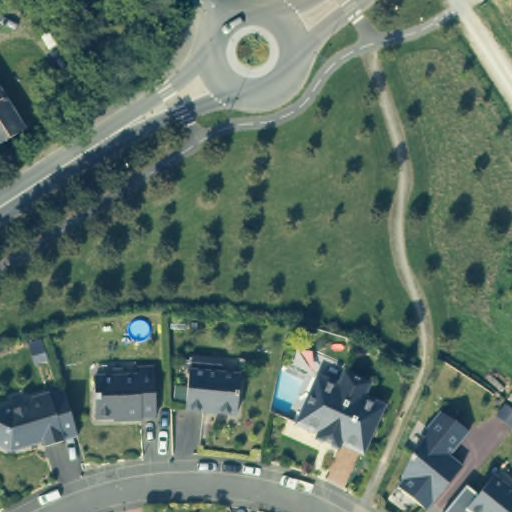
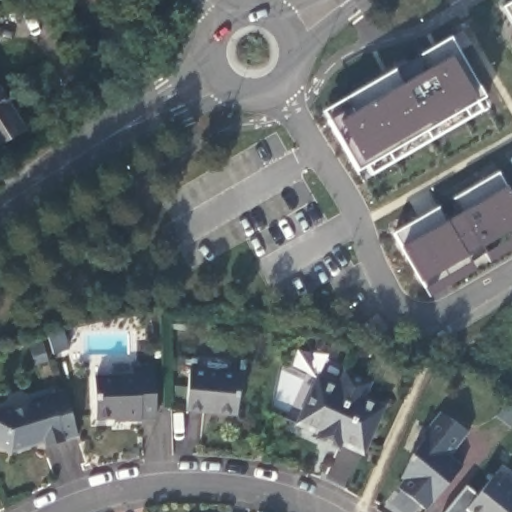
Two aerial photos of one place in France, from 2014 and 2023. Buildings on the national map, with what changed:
new [(512,0),(512,26),(501,6),(512,0)]
new [(449,36),(483,97),(356,171),(324,112),(449,36)]
unchanged [(0,148),(0,92),(24,132),(0,148)]
new [(498,171),(506,185),(512,195),(512,249),(488,263),(475,271),(428,298),(401,246),(395,233),(498,171)]
unchanged [(128,374),(128,367),(142,367),(145,413),(130,413),(129,418),(116,419),(114,414),(89,416),(87,377),(128,374)]
unchanged [(341,383),(347,370),(370,380),(364,394),(385,403),(364,448),(343,438),(341,444),(317,433),(319,429),(300,420),(321,374),(341,383)]
unchanged [(238,377),(234,413),(184,407),(188,371),(238,377)]
unchanged [(8,445),(7,450),(0,451),(0,412),(13,408),(15,401),(37,395),(49,391),(63,437),(51,441),(31,447),(26,441),(8,445)]
unchanged [(398,486),(404,478),(400,475),(415,448),(424,437),(421,434),(440,410),(464,429),(469,431),(450,455),(462,464),(426,509),(398,486)]
unchanged [(471,510),(500,474),(512,484),(512,512),(474,512),(471,510)]

